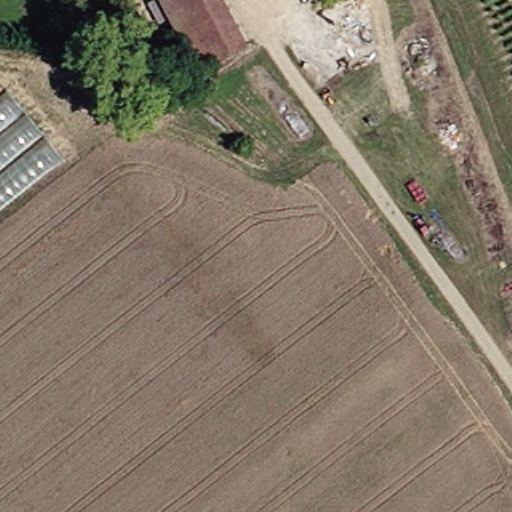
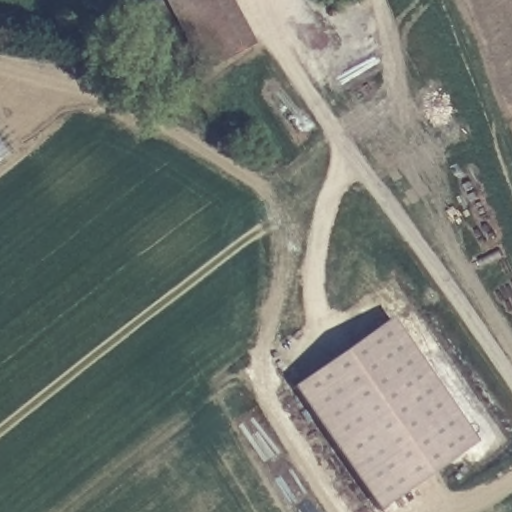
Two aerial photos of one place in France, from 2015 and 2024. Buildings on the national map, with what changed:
unchanged [(162,15),(151,21),(144,2),(148,0),(221,0),(243,45),(190,71),(162,15)]
new [(0,130),(16,151),(0,163),(0,130)]
new [(478,443),(377,512),(374,512),(290,388),(392,318),(478,443)]

